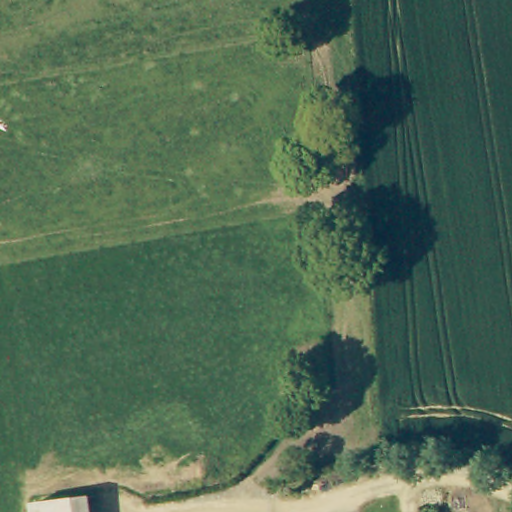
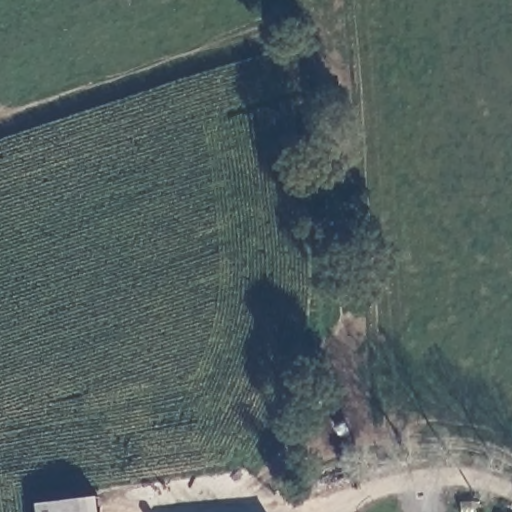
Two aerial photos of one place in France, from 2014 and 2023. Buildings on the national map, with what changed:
unchanged [(99,512),(38,512),(37,504),(96,495),(99,512)]

